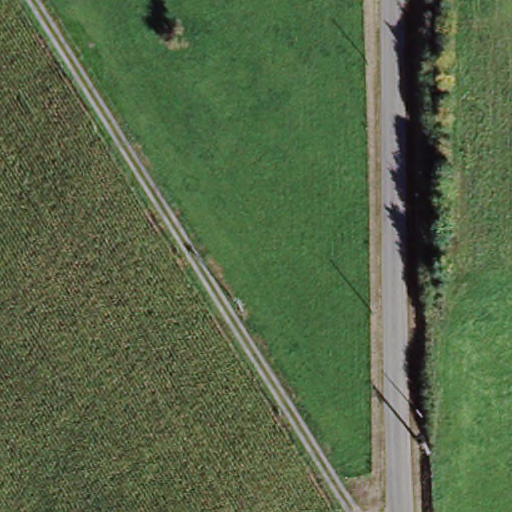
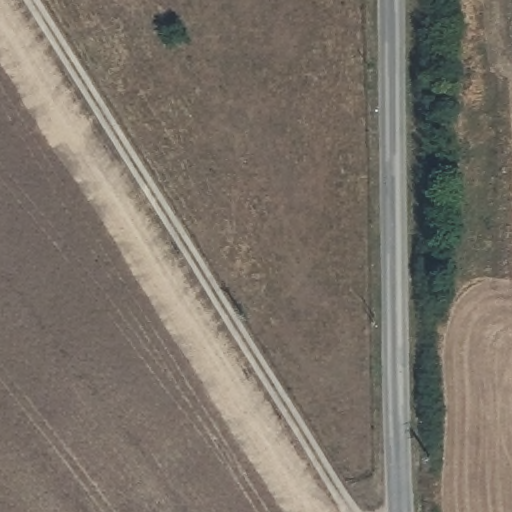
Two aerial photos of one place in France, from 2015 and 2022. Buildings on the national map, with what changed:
[]

